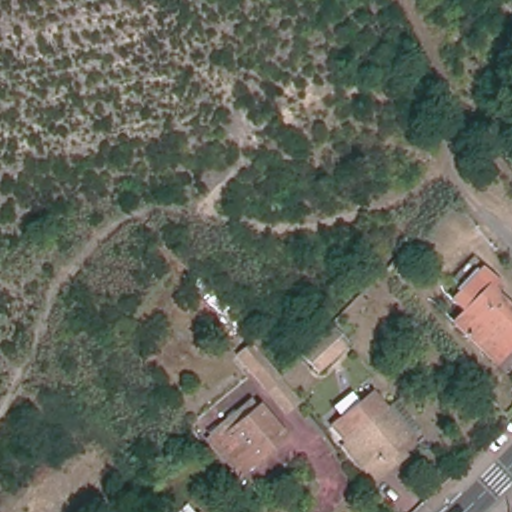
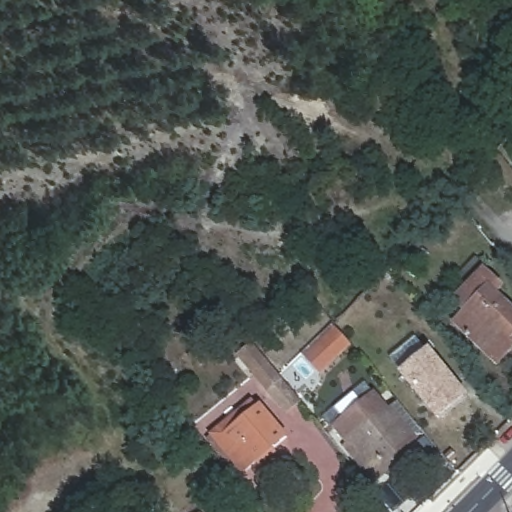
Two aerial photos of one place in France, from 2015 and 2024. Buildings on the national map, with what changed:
unchanged [(472,300),(462,291),(485,268),(512,291),(512,350),(500,367),(454,322),(472,300)]
unchanged [(303,356),(332,329),(351,344),(321,375),(303,356)]
unchanged [(298,400),(286,410),(238,354),(249,345),(298,400)]
new [(426,351),(462,396),(436,416),(401,372),(426,351)]
unchanged [(343,446),(347,442),(334,424),(376,393),(389,407),(397,403),(420,434),(376,485),(343,446)]
unchanged [(247,476),(214,438),(241,415),(254,403),(261,410),(288,440),(273,453),(261,463),(247,476)]
unchanged [(215,506),(210,510),(206,506),(211,502),(215,506)]
unchanged [(120,512),(122,510),(124,512),(120,512)]

